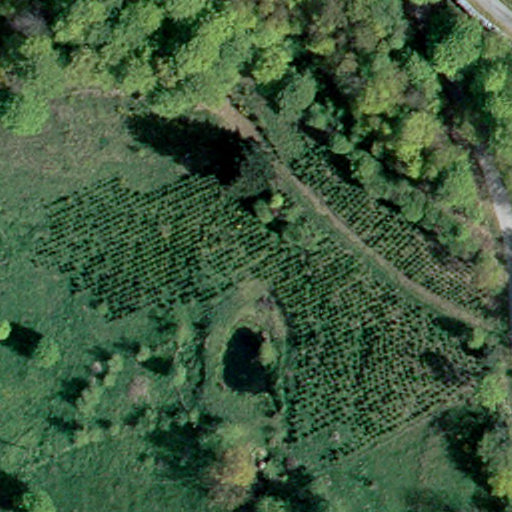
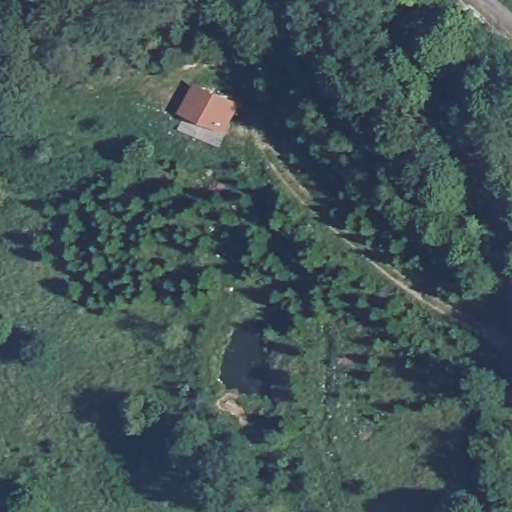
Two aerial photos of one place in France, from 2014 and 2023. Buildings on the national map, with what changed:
new [(185,114),(196,86),(237,101),(227,128),(185,114)]

